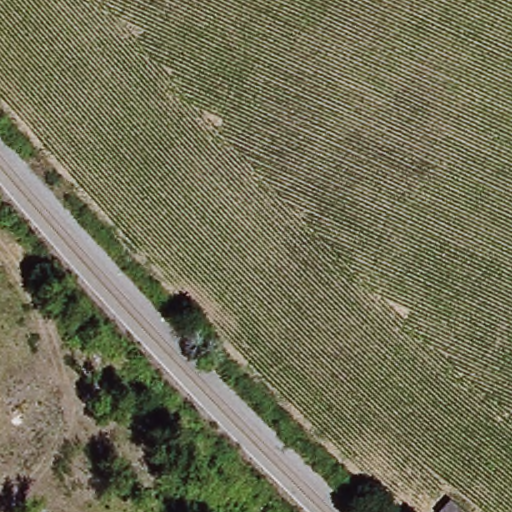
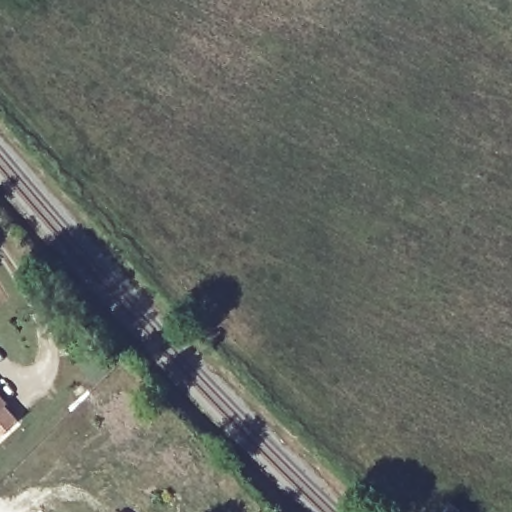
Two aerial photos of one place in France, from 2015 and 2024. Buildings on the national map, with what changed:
new [(6,406),(20,421),(0,439),(0,395),(8,404),(6,406)]

